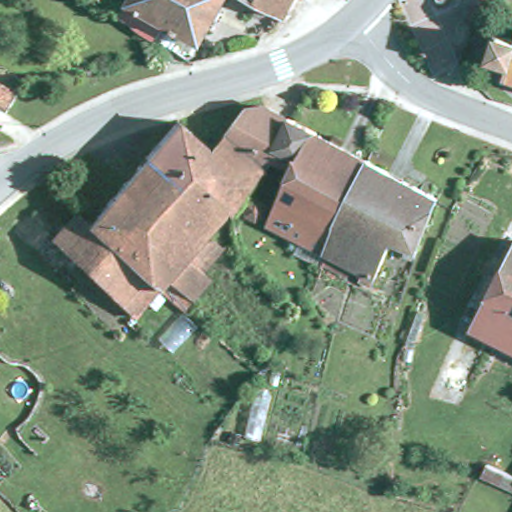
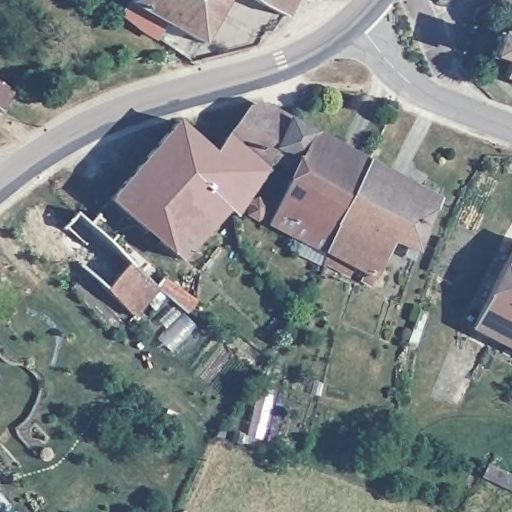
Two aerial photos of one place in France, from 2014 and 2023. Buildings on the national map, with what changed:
unchanged [(158,20),(151,35),(139,28),(119,9),(124,0),(218,0),(198,39),(158,20)]
unchanged [(253,0),(286,0),(279,14),(253,0)]
unchanged [(512,37),(512,78),(502,74),(506,61),(489,56),(498,33),(512,37)]
unchanged [(0,87),(8,91),(0,106),(0,87)]
unchanged [(270,160),(261,170),(221,136),(241,106),(258,105),(281,118),(277,145),(270,160)]
unchanged [(304,260),(303,260),(310,244),(261,222),(298,159),(277,145),(281,118),(366,165),(324,263),(321,269),(304,260)]
unchanged [(193,264),(174,256),(106,198),(169,125),(206,158),(221,136),(261,170),(225,213),(218,206),(196,230),(211,245),(193,264)]
unchanged [(431,195),(411,244),(387,237),(369,283),(361,279),(364,269),(334,257),(331,265),(324,263),(366,165),(431,195)]
unchanged [(148,284),(121,314),(54,249),(49,253),(46,254),(16,224),(28,215),(49,235),(70,213),(83,224),(148,284)]
unchanged [(469,328),(512,248),(512,349),(469,328)]
unchanged [(488,475),(494,463),(512,471),(512,487),(488,475)]

